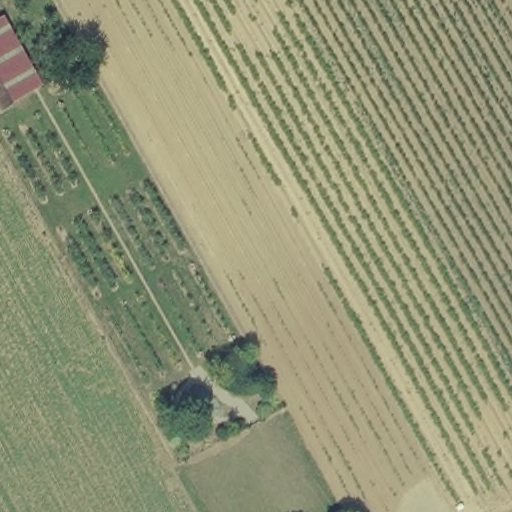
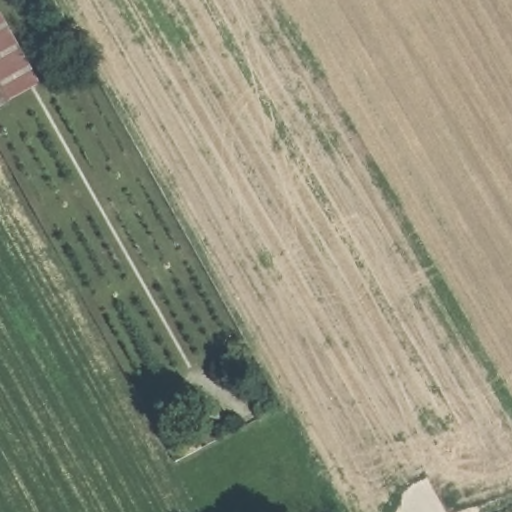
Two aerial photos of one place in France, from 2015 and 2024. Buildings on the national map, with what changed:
unchanged [(0,70),(0,16),(3,14),(41,83),(16,97),(0,70)]
unchanged [(0,108),(0,70),(16,97),(0,108)]

